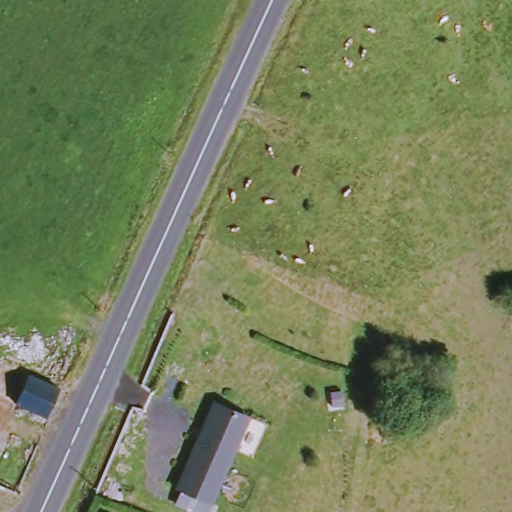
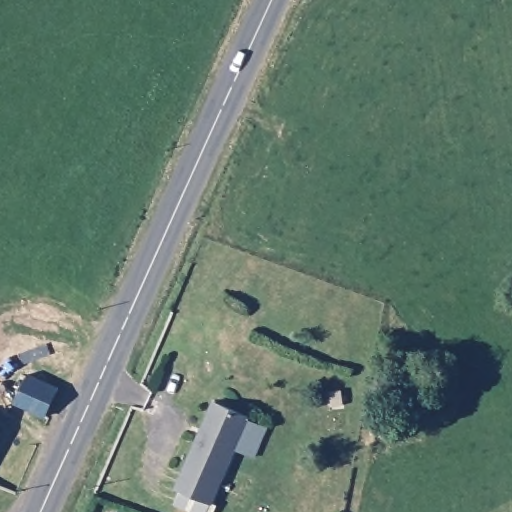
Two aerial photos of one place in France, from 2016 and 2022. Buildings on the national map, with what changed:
unchanged [(15,407),(40,369),(61,386),(39,424),(15,407)]
unchanged [(219,402),(253,417),(214,502),(180,487),(219,402)]
unchanged [(0,441),(0,432),(4,434),(0,441)]

